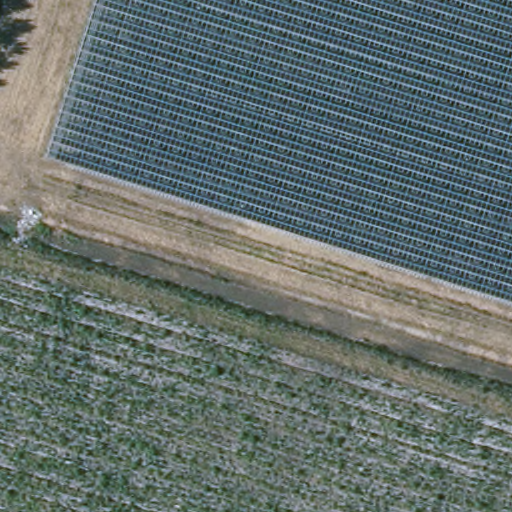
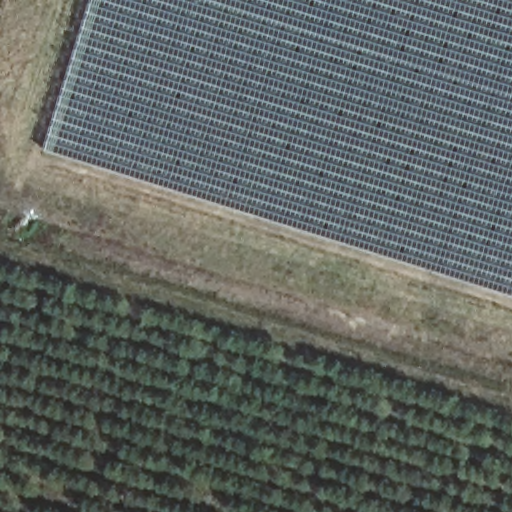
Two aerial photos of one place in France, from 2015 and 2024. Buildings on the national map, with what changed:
unchanged [(47,153),(95,0),(512,0),(512,299),(47,153)]

